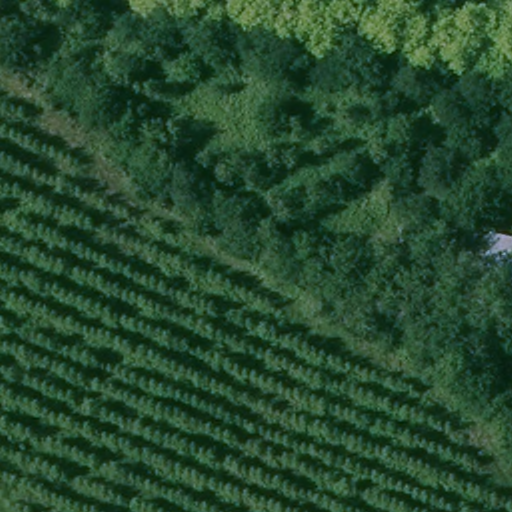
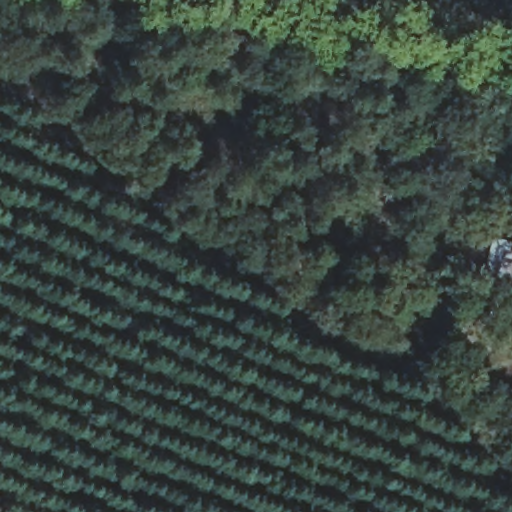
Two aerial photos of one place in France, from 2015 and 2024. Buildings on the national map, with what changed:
unchanged [(468,243),(512,253),(512,284),(461,271),(468,243)]

